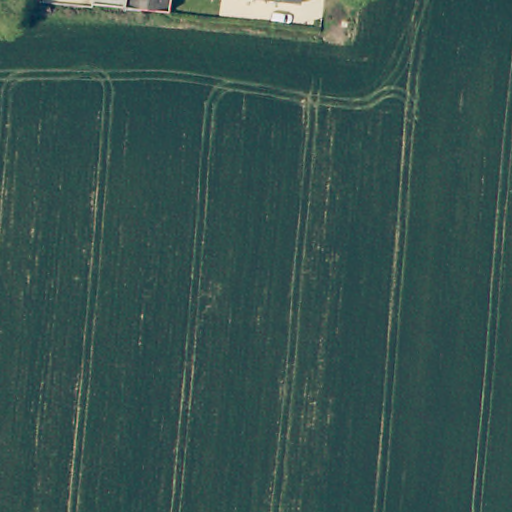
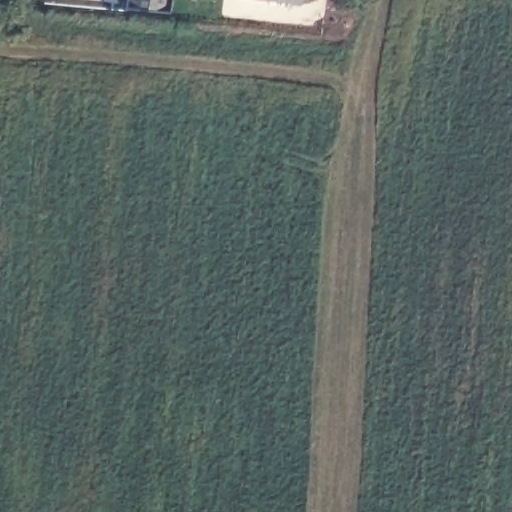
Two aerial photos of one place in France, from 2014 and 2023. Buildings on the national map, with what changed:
unchanged [(93,6),(92,9),(44,4),(44,0),(94,0),(93,6)]
unchanged [(165,13),(93,6),(94,0),(167,0),(165,13)]
unchanged [(300,2),(276,0),(300,0),(300,2)]

